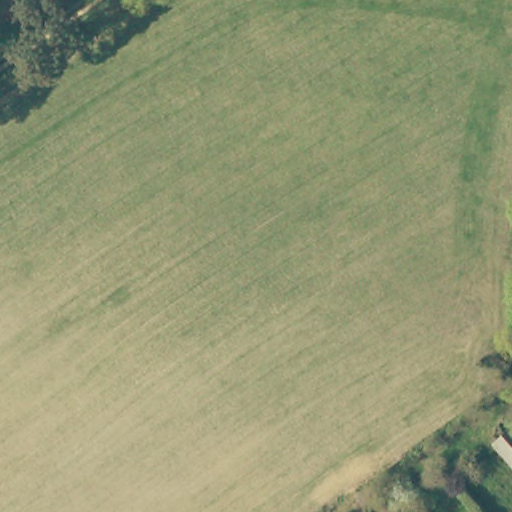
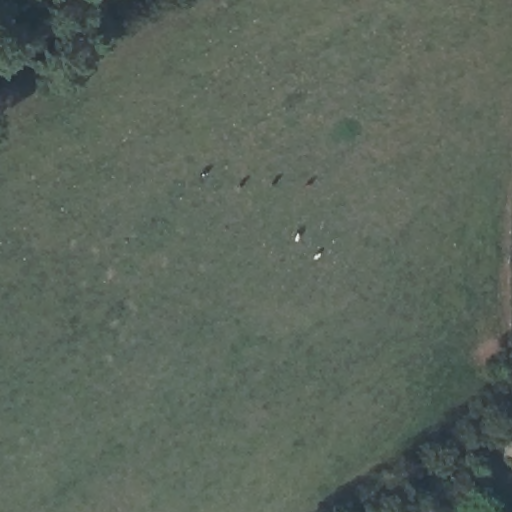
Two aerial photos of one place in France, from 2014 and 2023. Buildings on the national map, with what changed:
unchanged [(512,430),(512,458),(498,444),(512,430)]

